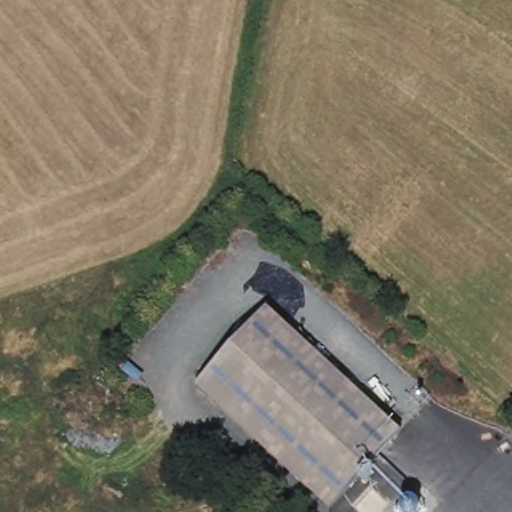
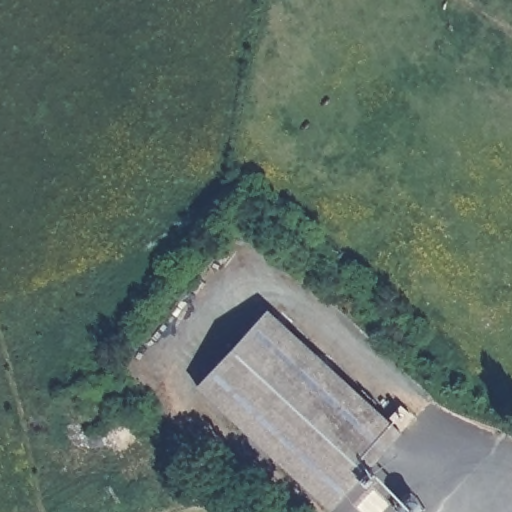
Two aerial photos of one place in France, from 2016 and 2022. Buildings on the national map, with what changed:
unchanged [(202,391),(219,366),(252,321),(402,426),(345,508),(210,413),(194,402),(202,391)]

